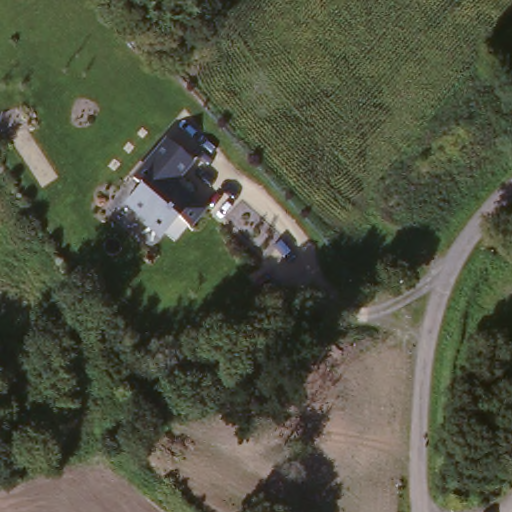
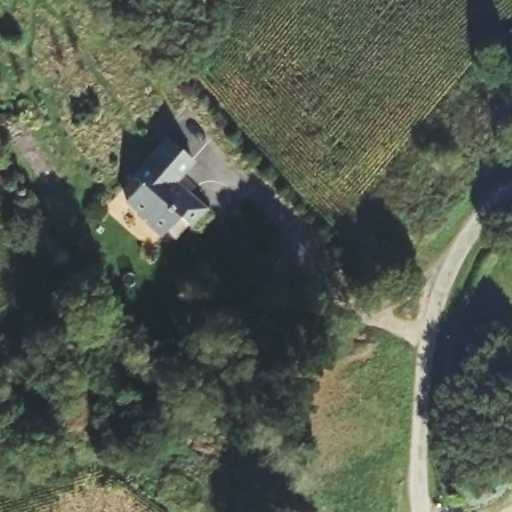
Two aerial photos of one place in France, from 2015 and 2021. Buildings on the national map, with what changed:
unchanged [(145,217),(146,215),(125,198),(138,181),(131,175),(163,135),(189,155),(170,180),(186,193),(189,190),(204,203),(190,221),(178,212),(162,231),(145,217)]

